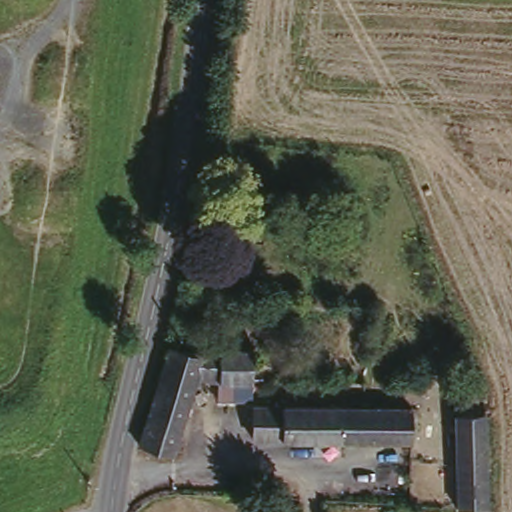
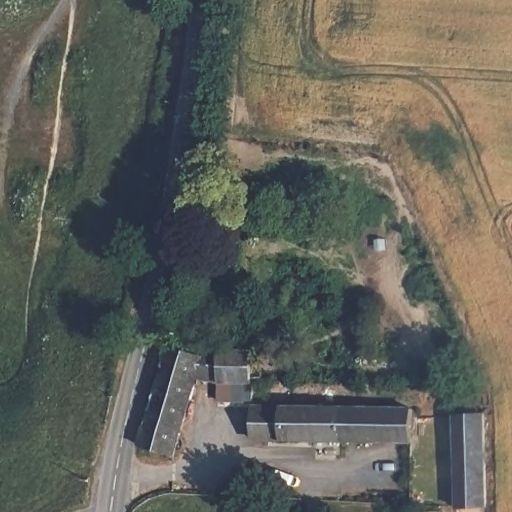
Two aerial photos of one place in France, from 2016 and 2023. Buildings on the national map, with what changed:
unchanged [(200,362),(201,358),(248,357),(247,376),(257,377),(257,386),(191,385),(173,432),(179,434),(174,451),(167,448),(163,460),(135,450),(165,350),(200,362)]
unchanged [(450,400),(469,400),(469,411),(480,412),(481,505),(455,505),(450,400)]
unchanged [(412,410),(411,445),(250,440),(250,407),(412,410)]
unchanged [(277,480),(273,492),(261,487),(266,476),(277,480)]

